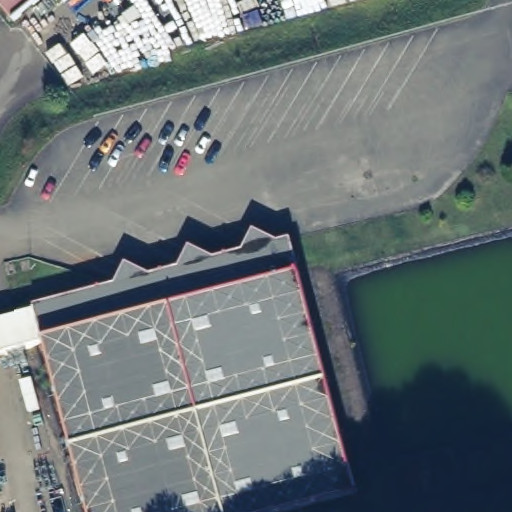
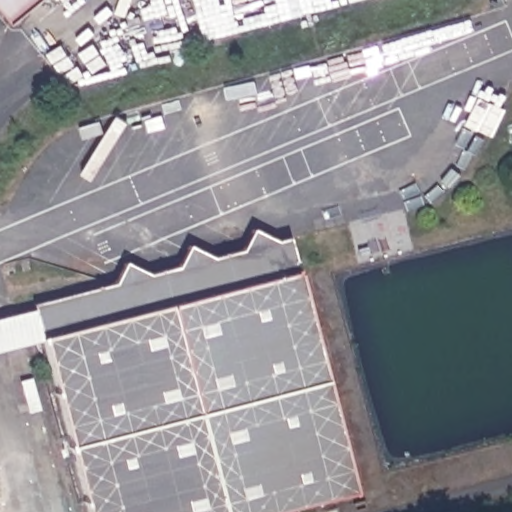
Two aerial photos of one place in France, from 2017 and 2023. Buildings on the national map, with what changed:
unchanged [(34,0),(14,17),(0,1),(0,0),(34,0)]
unchanged [(31,302),(111,281),(122,260),(147,272),(175,264),(185,244),(211,255),(237,248),(249,226),(273,239),(286,235),(354,490),(269,512),(86,512),(31,302)]

